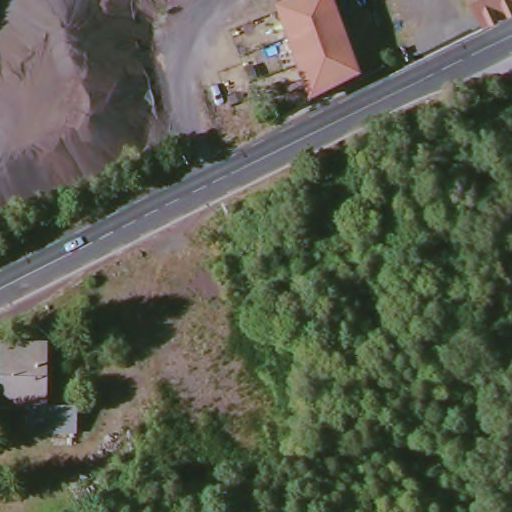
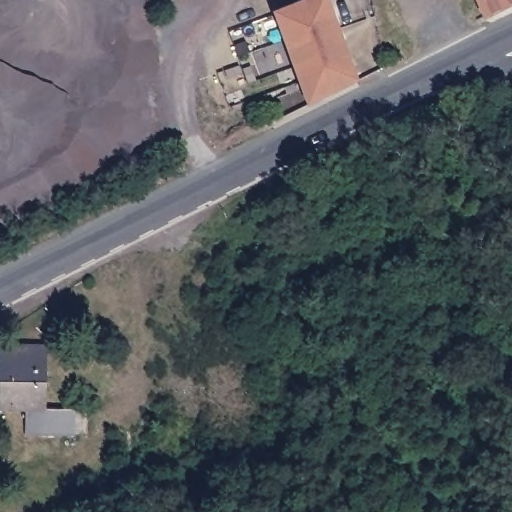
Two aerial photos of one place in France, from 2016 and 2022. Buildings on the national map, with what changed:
unchanged [(472,0),(512,0),(512,5),(482,20),(472,0)]
unchanged [(285,46),(275,19),(324,1),(353,84),(320,100),(307,106),(285,46)]
unchanged [(355,163),(338,172),(333,160),(351,151),(355,163)]
unchanged [(26,433),(26,409),(7,409),(8,381),(0,381),(1,364),(11,364),(11,347),(38,347),(38,365),(48,365),(48,407),(77,407),(76,432),(26,433)]

